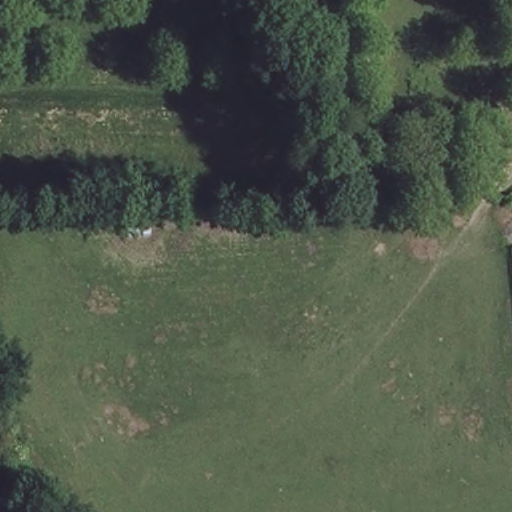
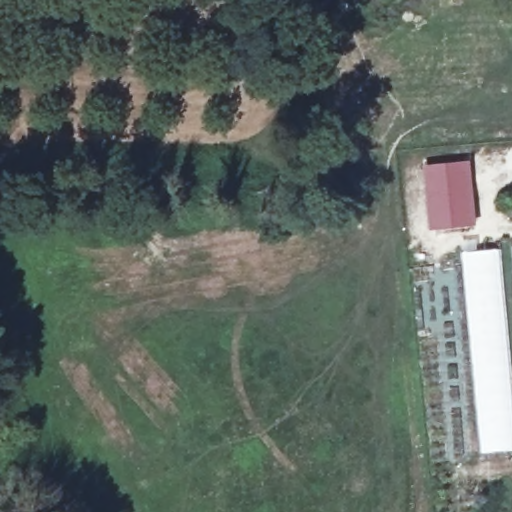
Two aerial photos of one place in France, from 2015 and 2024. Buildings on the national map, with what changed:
new [(470,161),(478,226),(430,231),(424,167),(470,161)]
new [(480,460),(461,254),(511,247),(512,264),(512,457),(480,460)]
unchanged [(512,247),(512,264),(511,247),(512,247)]

